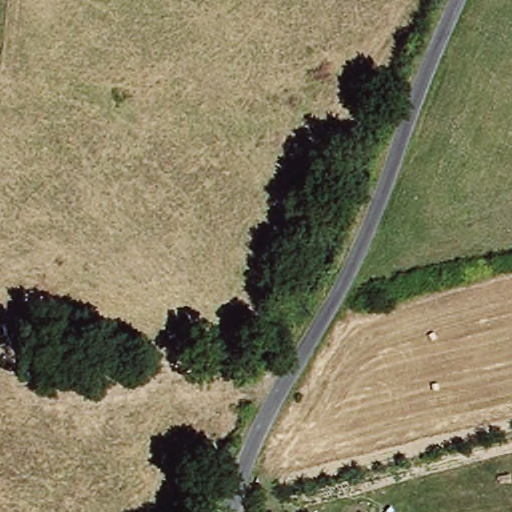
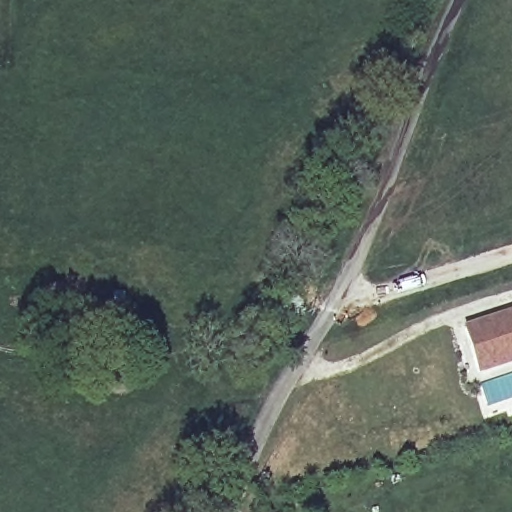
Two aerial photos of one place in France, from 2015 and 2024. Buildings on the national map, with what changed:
new [(512,363),(478,374),(464,327),(512,311),(512,363)]

